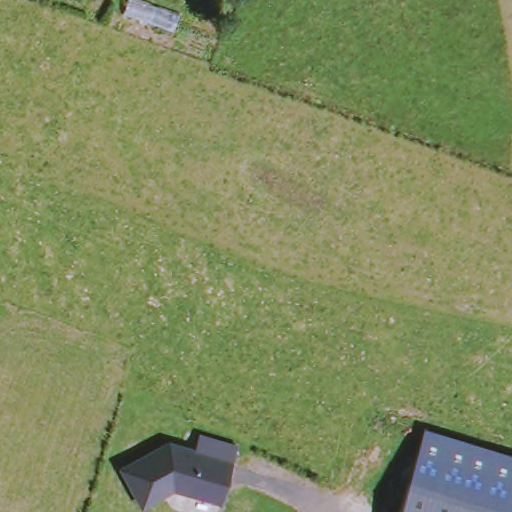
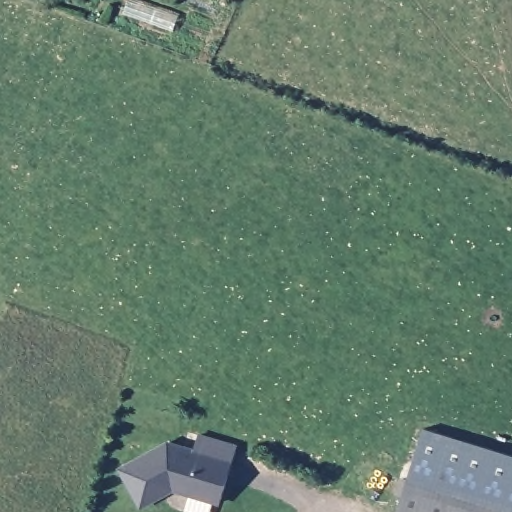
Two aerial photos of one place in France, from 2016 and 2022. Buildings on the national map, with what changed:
unchanged [(409,483),(427,430),(512,457),(512,512),(506,512),(409,483)]
unchanged [(220,503),(174,490),(141,507),(118,467),(170,439),(194,448),(199,434),(238,445),(220,503)]
unchanged [(404,498),(397,496),(402,481),(506,512),(400,512),(404,498)]

